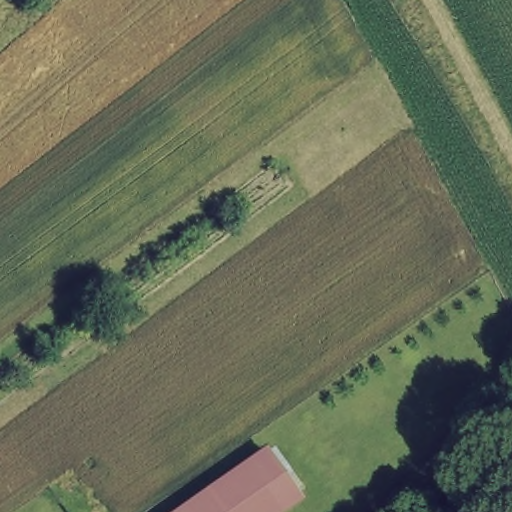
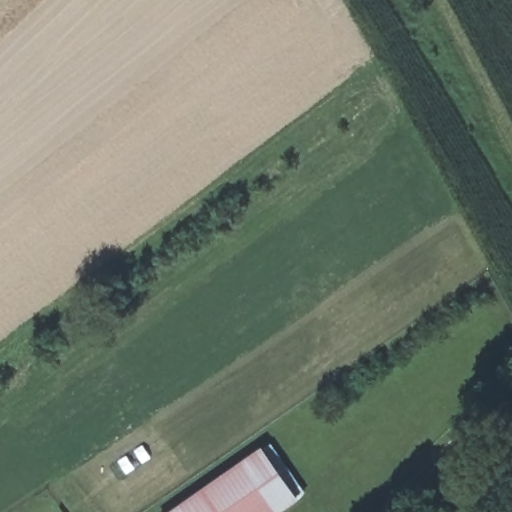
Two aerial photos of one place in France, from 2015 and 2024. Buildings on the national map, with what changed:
unchanged [(261,445),(290,487),(296,496),(273,512),(186,512),(179,503),(261,445)]
unchanged [(186,512),(167,512),(179,503),(186,512)]

